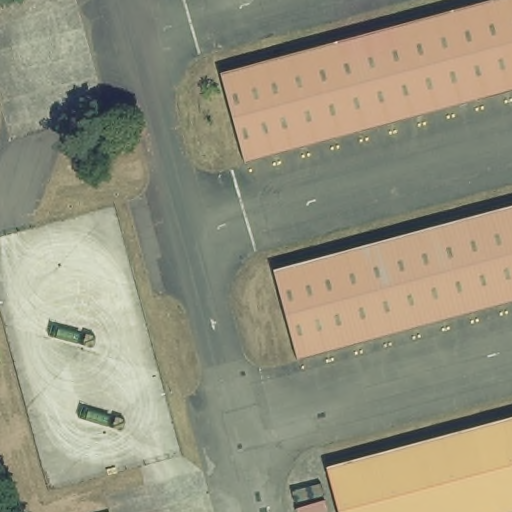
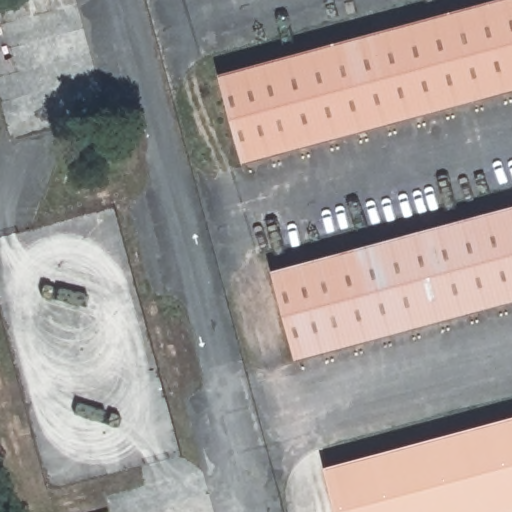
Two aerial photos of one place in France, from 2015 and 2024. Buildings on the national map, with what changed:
unchanged [(221,75),(494,0),(512,0),(512,89),(244,163),(221,75)]
unchanged [(274,270),(512,207),(512,301),(298,361),(274,270)]
unchanged [(340,512),(328,466),(512,418),(512,511),(508,512),(340,512)]

